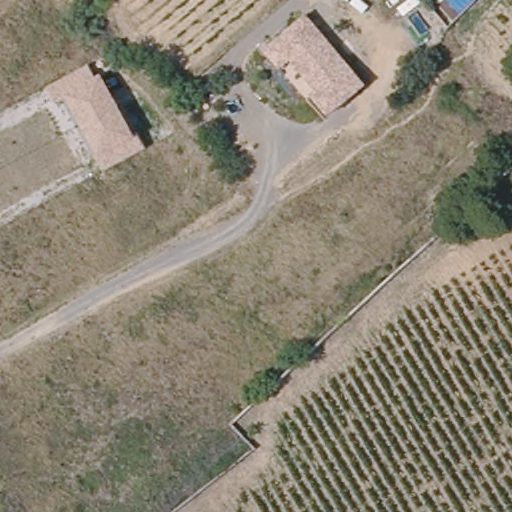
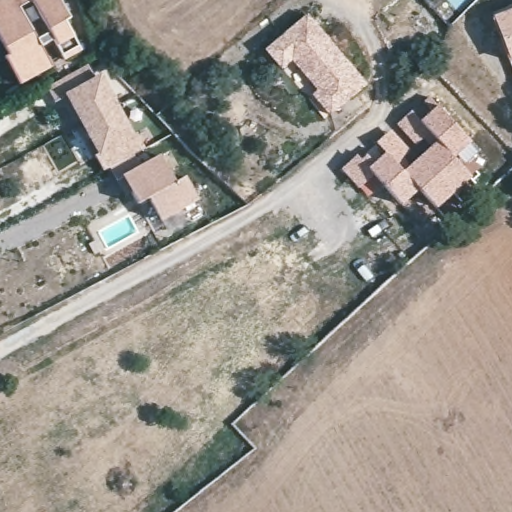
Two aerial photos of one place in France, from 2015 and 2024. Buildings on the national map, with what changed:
new [(66,22),(74,37),(81,49),(64,60),(58,44),(53,36),(40,47),(50,65),(19,82),(4,57),(9,54),(0,37),(0,0),(60,0),(70,19),(66,22)]
new [(512,62),(496,20),(512,14),(512,62)]
unchanged [(306,19),(365,89),(331,120),(309,99),(316,92),(291,65),(281,72),(264,52),(306,19)]
unchanged [(98,154),(65,95),(53,102),(46,86),(88,64),(96,76),(101,73),(135,136),(139,133),(146,148),(105,169),(98,154)]
new [(434,208),(418,190),(399,207),(359,162),(364,157),(374,166),(385,155),(394,165),(400,160),(408,169),(420,158),(432,147),(424,138),(429,133),(421,123),(433,112),(424,103),(429,97),(470,142),(453,158),(469,176),(434,208)]
new [(195,205),(153,227),(128,179),(123,181),(116,167),(162,143),(195,205)]

